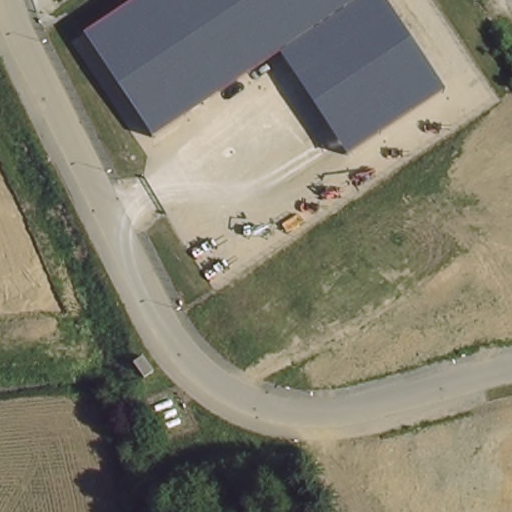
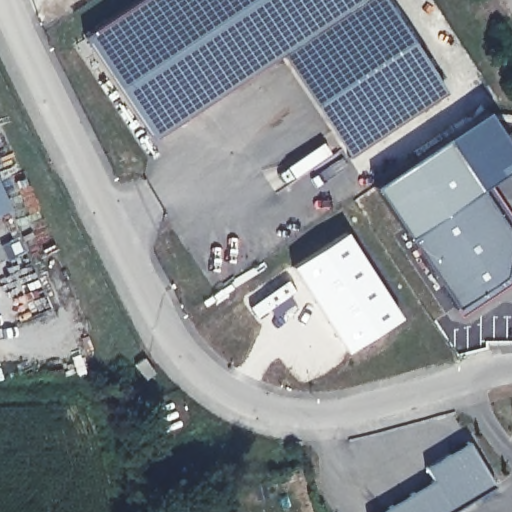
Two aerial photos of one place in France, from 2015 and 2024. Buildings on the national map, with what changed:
unchanged [(348,156),(280,52),(155,137),(88,35),(140,0),(386,0),(446,91),(348,156)]
new [(293,176),(286,166),(323,141),(330,152),(293,176)]
new [(512,214),(512,237),(510,257),(451,295),(407,218),(481,167),(512,214)]
new [(9,209),(0,212),(0,188),(9,209)]
new [(345,230),(401,316),(346,350),(290,267),(345,230)]
new [(432,480),(424,467),(468,441),(495,486),(451,512),(379,512),(432,480)]

